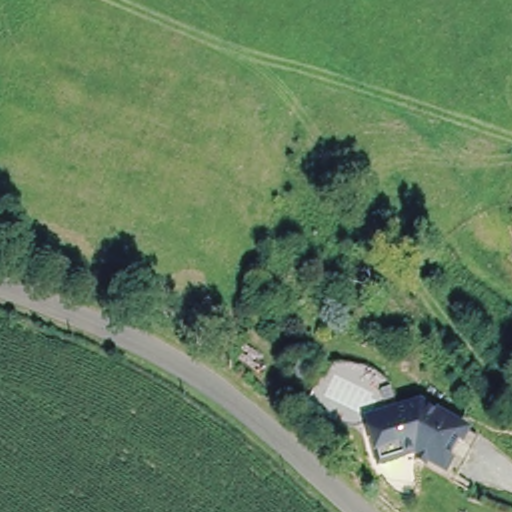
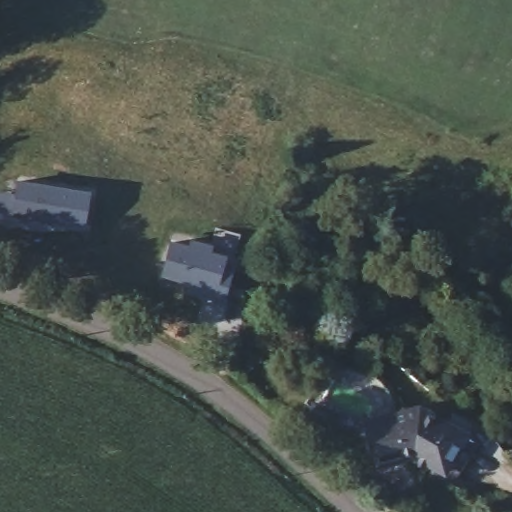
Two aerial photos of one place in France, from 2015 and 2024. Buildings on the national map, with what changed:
new [(42,219),(41,225),(25,222),(26,216),(0,210),(0,194),(14,195),(16,179),(91,190),(86,227),(42,219)]
new [(224,268),(231,270),(224,302),(185,292),(188,282),(163,276),(171,240),(189,245),(190,237),(214,244),(212,251),(227,255),(224,268)]
unchanged [(407,446),(374,456),(362,416),(413,401),(449,421),(429,457),(407,446)]
unchanged [(449,421),(472,433),(453,469),(429,457),(449,421)]

